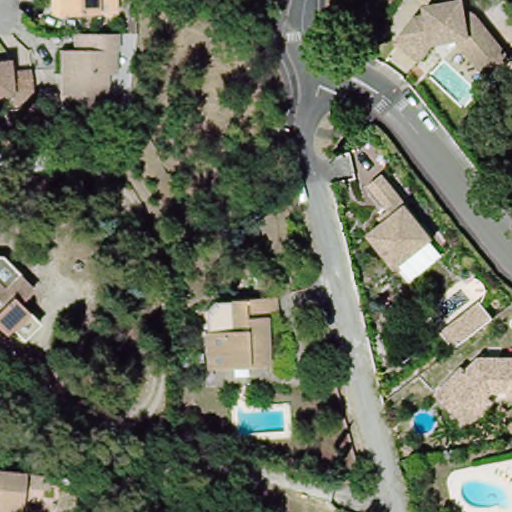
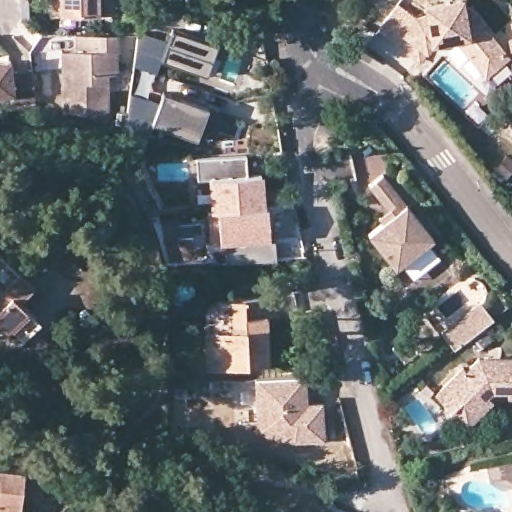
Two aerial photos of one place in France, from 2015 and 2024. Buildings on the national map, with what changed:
unchanged [(90,0),(90,14),(53,14),(45,14),(45,0),(90,0)]
unchanged [(90,14),(90,0),(117,0),(117,14),(90,14)]
unchanged [(405,36),(424,11),(433,11),(434,1),(471,3),(473,11),(483,14),(512,52),(512,59),(494,73),(464,35),(454,35),(440,34),(427,51),(405,36)]
unchanged [(353,40),(366,21),(376,29),(363,47),(353,40)]
unchanged [(138,34),(138,31),(167,40),(171,29),(211,43),(201,74),(161,60),(157,75),(134,67),(138,34)]
unchanged [(58,116),(56,82),(56,54),(65,54),(70,54),(70,36),(113,34),(113,52),(113,81),(101,81),(101,115),(58,116)]
unchanged [(38,67),(41,96),(42,99),(21,102),(20,92),(0,95),(0,60),(15,58),(18,70),(38,67)]
new [(198,140),(195,139),(155,126),(150,140),(126,131),(128,116),(128,112),(131,94),(160,104),(163,93),(205,106),(209,108),(198,140)]
new [(248,156),(248,176),(264,175),(268,207),(211,212),(208,180),(197,181),(196,158),(248,156)]
unchanged [(386,216),(366,190),(381,177),(431,240),(392,269),(364,235),(386,216)]
new [(270,238),(275,239),(276,259),(229,261),(228,242),(219,243),(218,240),(213,242),(211,212),(268,207),(270,238)]
unchanged [(14,337),(1,325),(0,325),(0,265),(23,289),(12,302),(30,321),(14,337)]
unchanged [(228,300),(273,297),(273,316),(263,316),(265,365),(204,369),(202,331),(230,329),(228,300)]
new [(455,349),(442,332),(479,302),(492,319),(455,349)]
unchanged [(484,409),(479,404),(469,394),(458,405),(442,389),(469,361),(473,365),(485,352),(512,352),(512,385),(498,385),(494,389),(499,395),(484,409)]
new [(258,443),(257,379),(308,379),(309,402),(324,402),(325,443),(258,443)]
unchanged [(22,512),(0,512),(0,474),(25,476),(22,512)]
unchanged [(50,494),(30,492),(31,477),(53,478),(50,494)]

